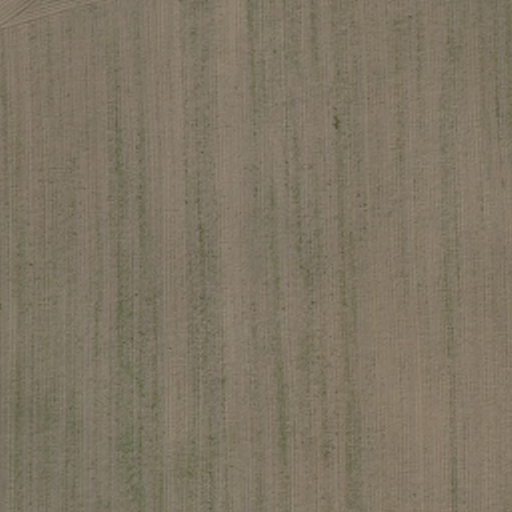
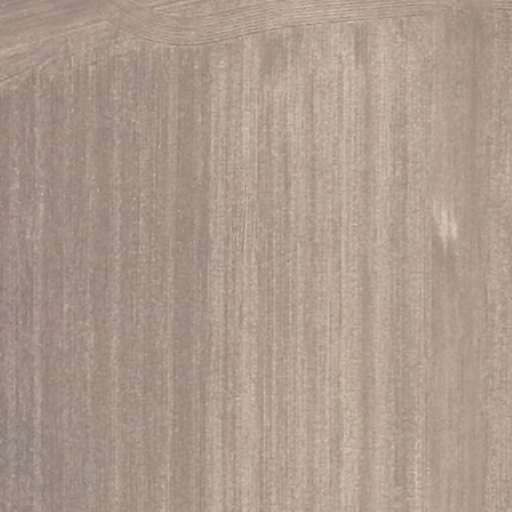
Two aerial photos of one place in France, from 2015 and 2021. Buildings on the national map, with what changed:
[]

